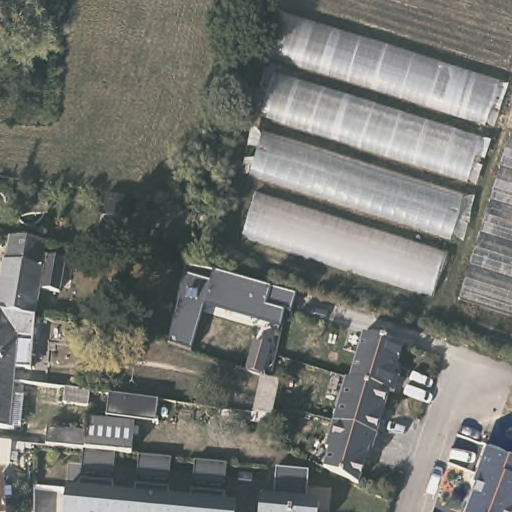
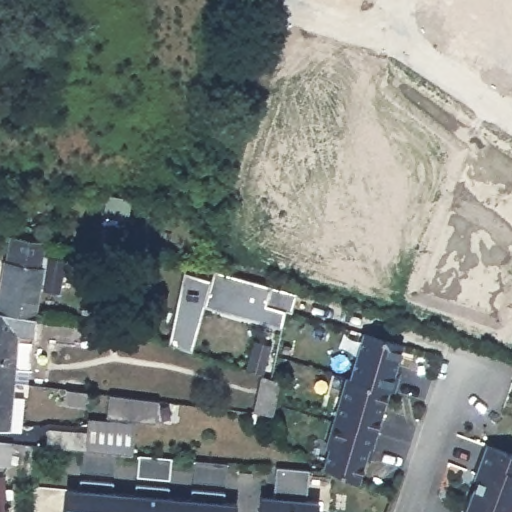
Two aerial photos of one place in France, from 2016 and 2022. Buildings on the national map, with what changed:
demolished [(245,230),(259,177),(238,172),(286,12),(502,80),(432,292),(245,230)]
unchanged [(512,133),(512,310),(461,293),(512,133)]
unchanged [(11,367),(8,386),(0,385),(0,270),(2,262),(4,258),(8,240),(46,242),(43,255),(65,259),(59,292),(40,289),(34,317),(32,335),(15,333),(14,337),(31,340),(28,368),(11,367)]
unchanged [(271,287),(297,292),(293,312),(286,311),(281,326),(206,305),(191,350),(170,345),(186,275),(213,282),(216,271),(271,287)]
unchanged [(401,338),(416,343),(408,366),(413,367),(408,382),(403,381),(383,439),(380,437),(368,473),(332,455),(339,437),(336,436),(361,368),(365,370),(379,332),(401,338)]
unchanged [(263,377),(251,373),(247,372),(255,344),(271,348),(263,377)]
unchanged [(250,427),(251,418),(251,416),(254,401),(261,402),(263,377),(272,381),(281,384),(273,418),(263,417),(262,428),(250,427)]
unchanged [(94,386),(92,399),(67,396),(69,382),(94,386)]
unchanged [(14,426),(8,430),(7,435),(3,435),(0,435),(0,385),(8,386),(7,400),(17,402),(14,426)]
new [(113,388),(162,395),(159,418),(110,412),(113,388)]
unchanged [(126,428),(123,457),(41,450),(36,450),(39,432),(77,436),(78,423),(126,428)]
unchanged [(512,448),(512,512),(477,512),(468,508),(475,487),(477,488),(479,484),(482,476),(479,474),(492,440),(512,448)]
unchanged [(2,447),(12,447),(10,465),(5,463),(4,468),(0,468),(0,446),(2,447)]
new [(143,455),(175,458),(173,480),(141,476),(143,455)]
new [(199,461),(231,463),(229,485),(197,482),(199,461)]
unchanged [(261,497),(262,491),(274,492),(277,462),(310,465),(307,495),(320,496),(318,512),(260,512),(261,497)]
unchanged [(67,483),(80,485),(81,475),(114,478),(113,487),(135,490),(136,480),(170,482),(169,492),(191,494),(192,485),(225,488),(224,497),(237,498),(235,512),(65,512),(67,483)]
unchanged [(2,512),(0,512),(0,489),(2,512)]

